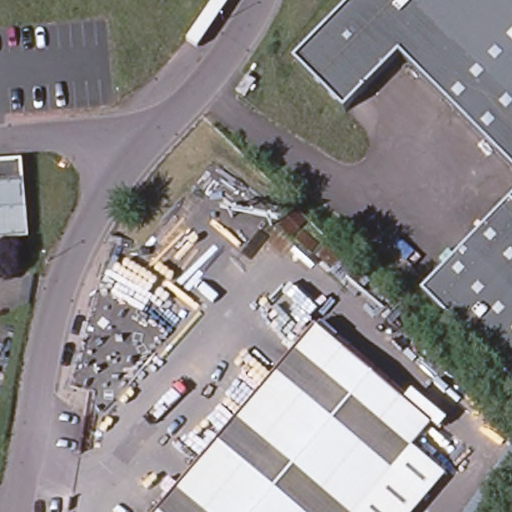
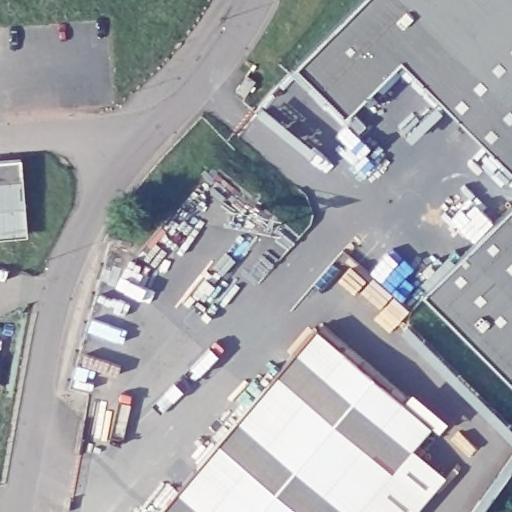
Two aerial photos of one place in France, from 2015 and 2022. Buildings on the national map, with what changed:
unchanged [(369,93),(345,117),(300,73),(294,67),(305,56),(334,26),(360,0),(512,0),(512,172),(400,62),(369,93)]
unchanged [(255,73),(263,79),(253,95),(245,89),(255,73)]
unchanged [(22,162),(28,236),(0,237),(0,163),(22,162)]
unchanged [(434,284),(512,205),(512,385),(422,296),(434,284)]
unchanged [(433,424),(356,512),(155,512),(320,325),(433,424)]

